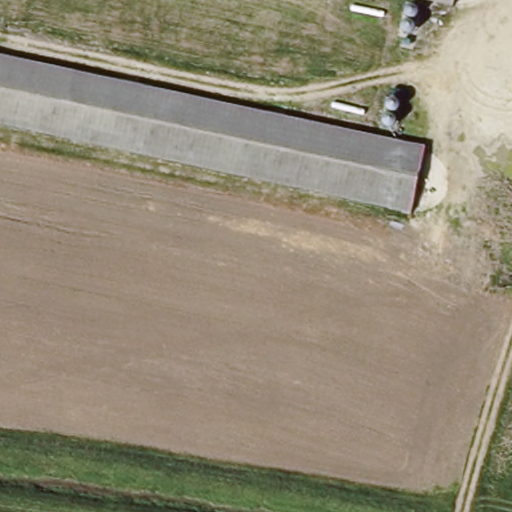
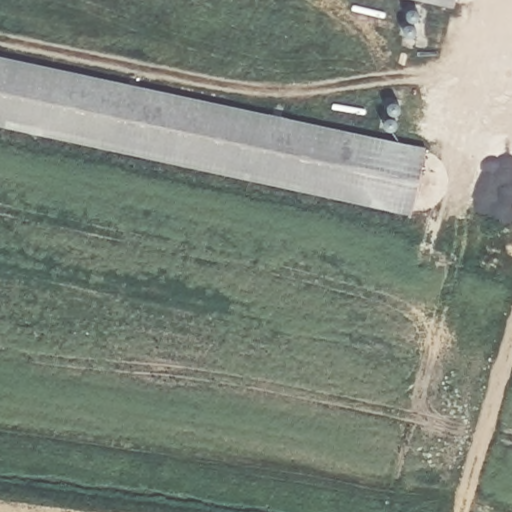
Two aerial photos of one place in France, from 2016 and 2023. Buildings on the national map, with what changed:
unchanged [(414,215),(0,126),(0,57),(426,149),(414,215)]

